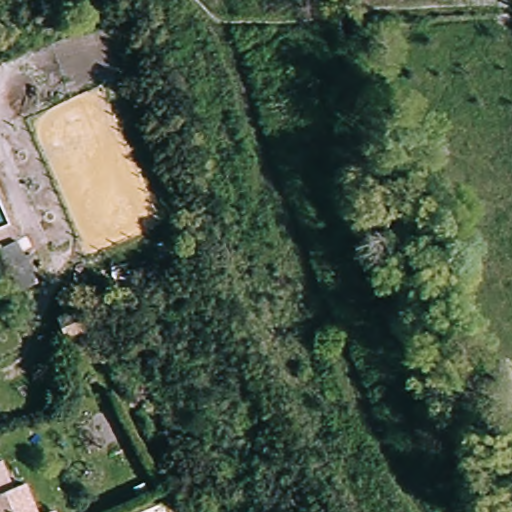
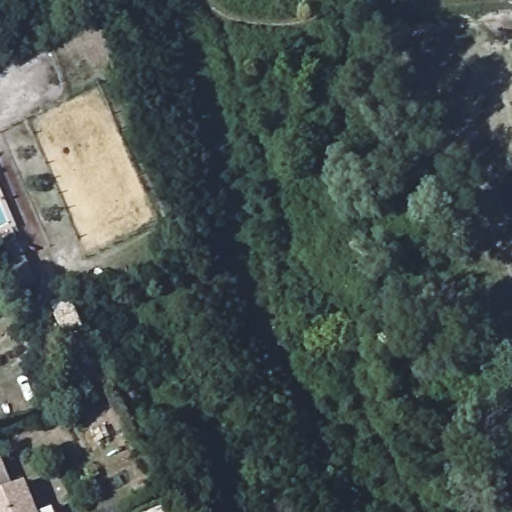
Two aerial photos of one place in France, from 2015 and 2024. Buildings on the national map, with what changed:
unchanged [(75,310),(81,329),(59,336),(52,318),(75,310)]
unchanged [(24,483),(35,512),(0,512),(0,491),(24,483)]

